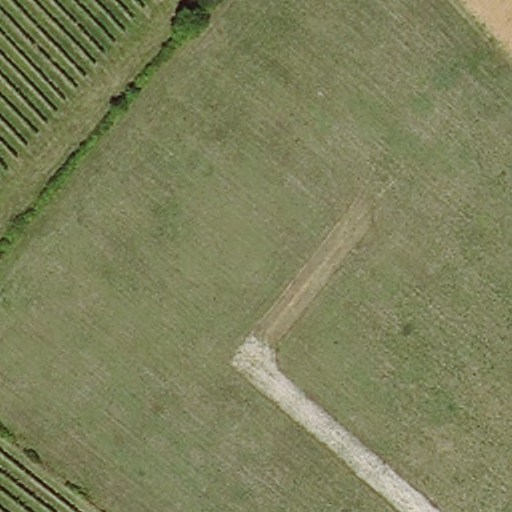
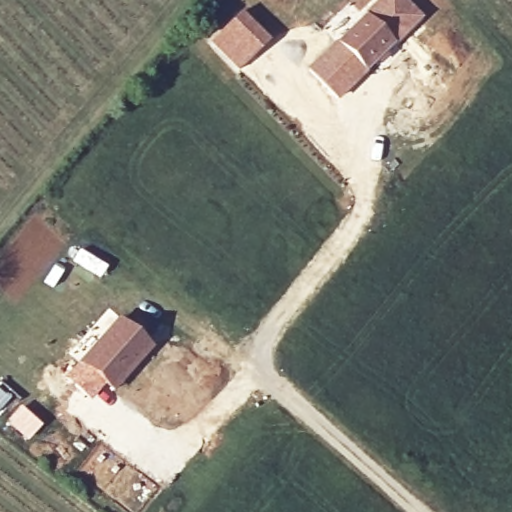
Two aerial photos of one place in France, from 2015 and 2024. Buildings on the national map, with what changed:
new [(405,0),(423,17),(366,74),(335,41),(376,0),(405,0)]
new [(241,10),(269,40),(239,69),(210,40),(241,10)]
new [(335,41),(366,74),(338,100),(307,68),(335,41)]
new [(118,316),(155,347),(114,393),(105,386),(90,402),(64,377),(78,361),(118,316)]

